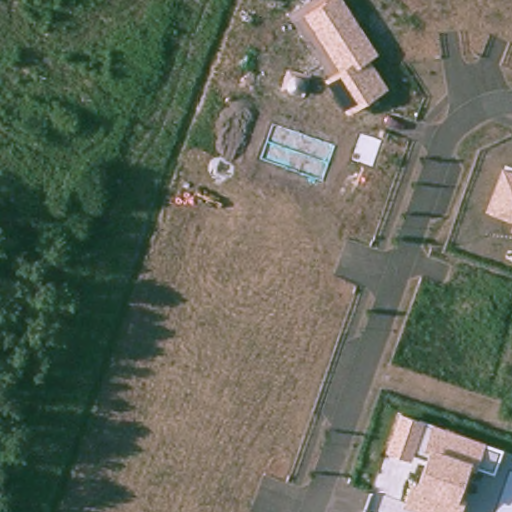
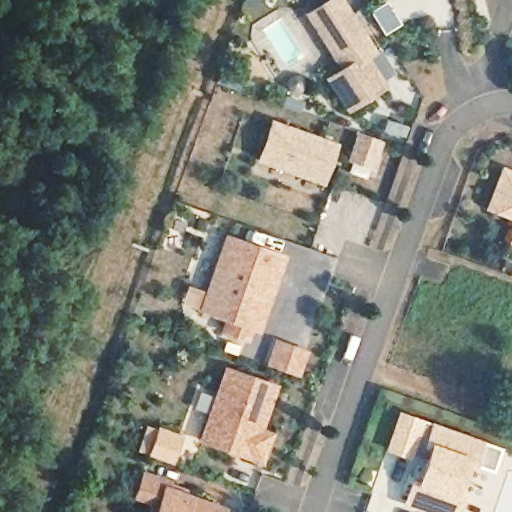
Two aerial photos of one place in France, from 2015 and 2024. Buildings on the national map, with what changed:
unchanged [(338,66),(303,13),(324,0),(345,0),(380,50),(371,58),(388,85),(347,113),(322,78),(338,66)]
new [(257,160),(271,118),(340,143),(325,185),(257,160)]
new [(358,130),(385,140),(376,169),(348,161),(358,130)]
unchanged [(485,210),(501,165),(512,169),(512,220),(485,210)]
unchanged [(509,229),(512,220),(512,231),(509,229)]
new [(252,329),(249,340),(221,331),(225,318),(200,310),(226,235),(287,254),(262,332),(252,329)]
new [(199,441),(226,367),(278,385),(263,429),(274,433),(265,468),(199,441)]
unchanged [(402,504),(411,479),(417,482),(426,456),(412,452),(411,457),(385,448),(399,409),(503,446),(495,472),(477,466),(470,463),(460,495),(466,499),(461,512),(424,512),(402,504)]
new [(155,506),(134,499),(143,471),(173,480),(172,488),(229,507),(227,512),(153,512),(155,506)]

